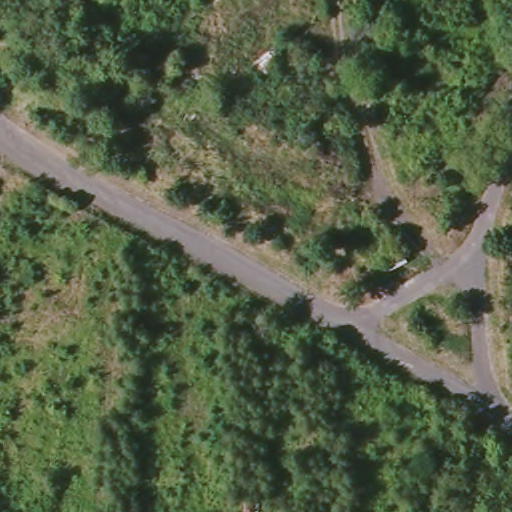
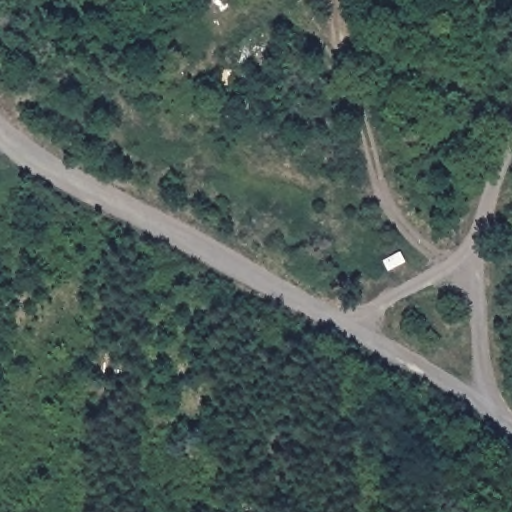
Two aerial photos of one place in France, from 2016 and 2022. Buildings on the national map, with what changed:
unchanged [(246,503),(260,505),(259,512),(245,512),(246,503)]

